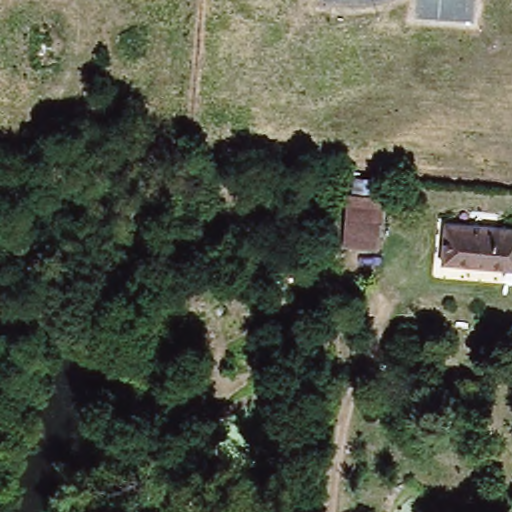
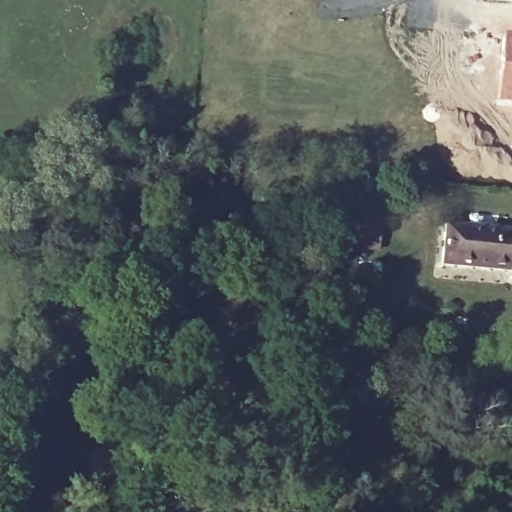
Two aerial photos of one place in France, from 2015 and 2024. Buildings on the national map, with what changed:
new [(509,124),(510,103),(496,102),(502,32),(512,33),(512,125),(509,124)]
unchanged [(350,202),(384,206),(381,242),(347,241),(350,202)]
unchanged [(438,263),(442,226),(512,233),(512,270),(438,263)]

